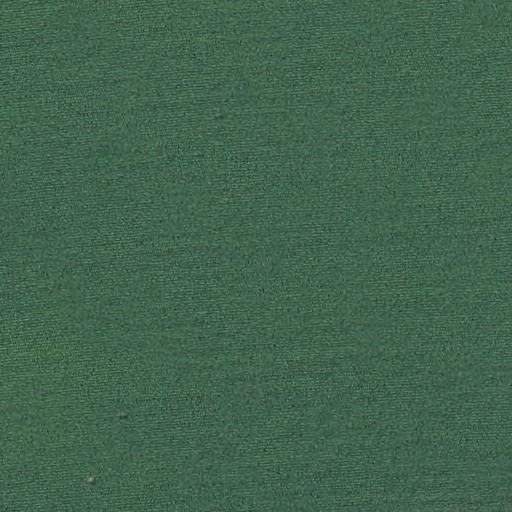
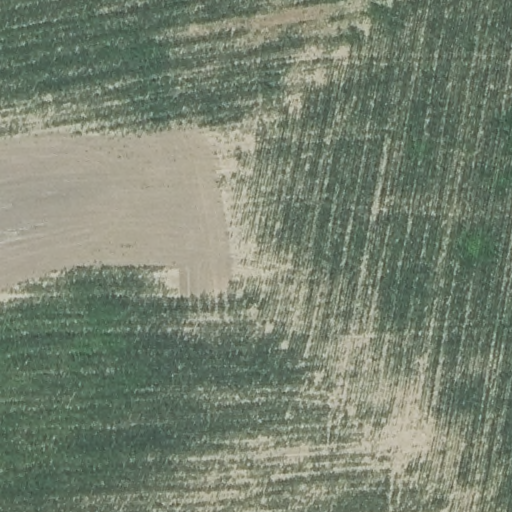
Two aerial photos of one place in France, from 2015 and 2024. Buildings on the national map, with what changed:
[]

